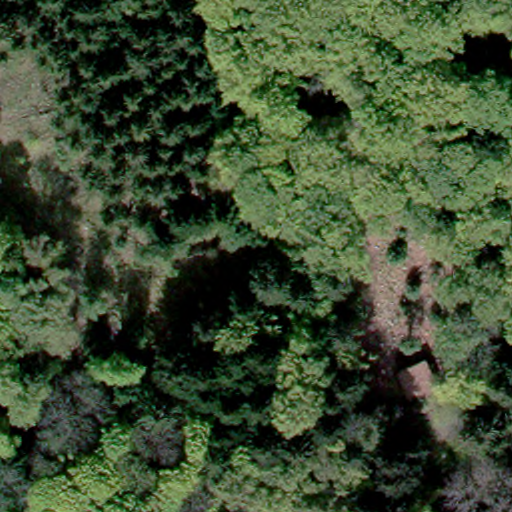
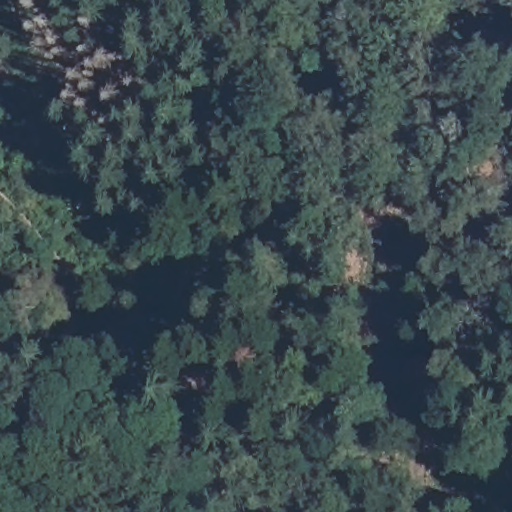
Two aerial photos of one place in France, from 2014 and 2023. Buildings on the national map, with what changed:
unchanged [(439,379),(452,373),(459,387),(446,393),(447,397),(421,409),(401,367),(428,355),(439,379)]

